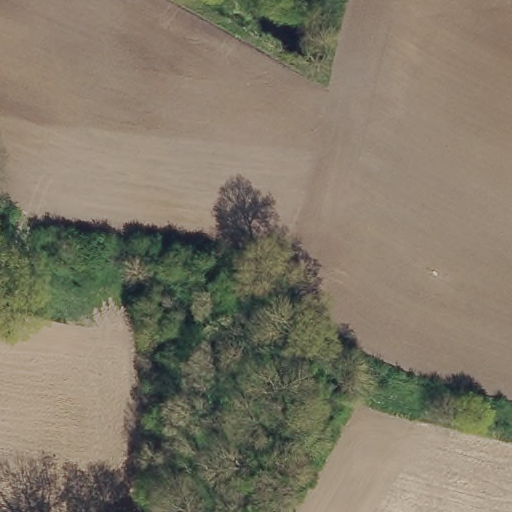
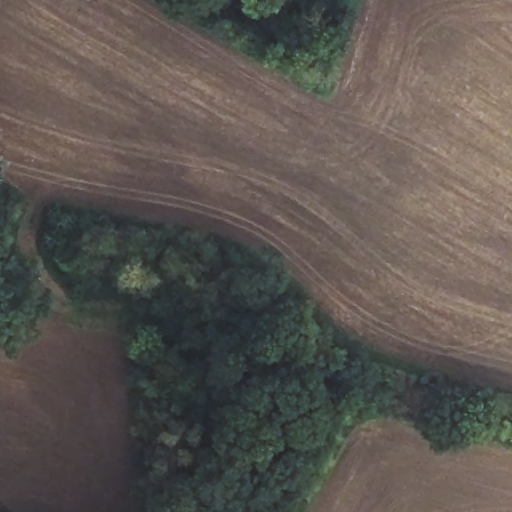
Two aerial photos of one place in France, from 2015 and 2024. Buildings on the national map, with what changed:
[]

